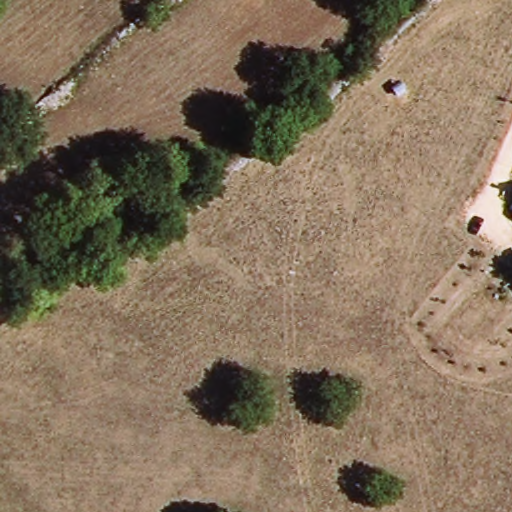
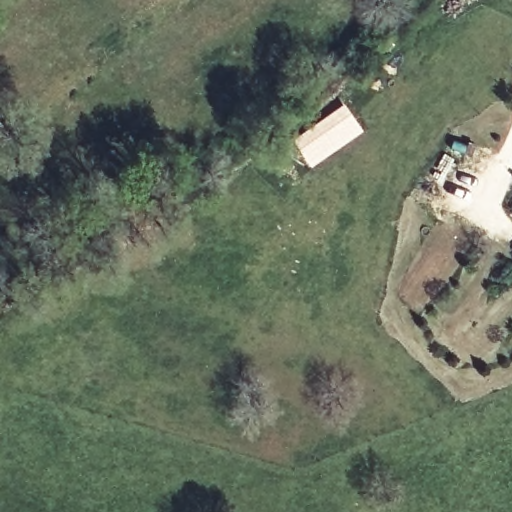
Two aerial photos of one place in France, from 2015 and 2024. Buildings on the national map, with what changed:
new [(311,166),(292,140),(344,104),(363,131),(311,166)]

